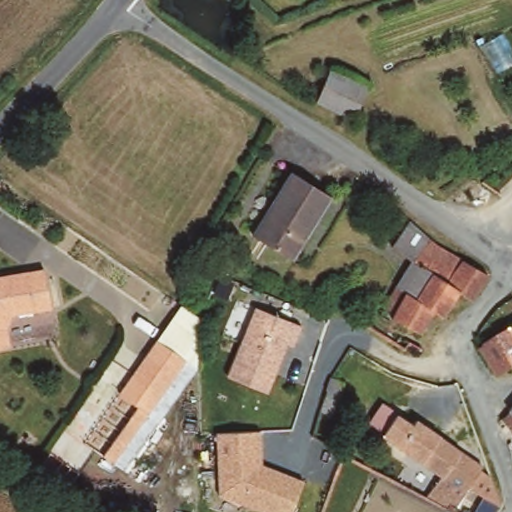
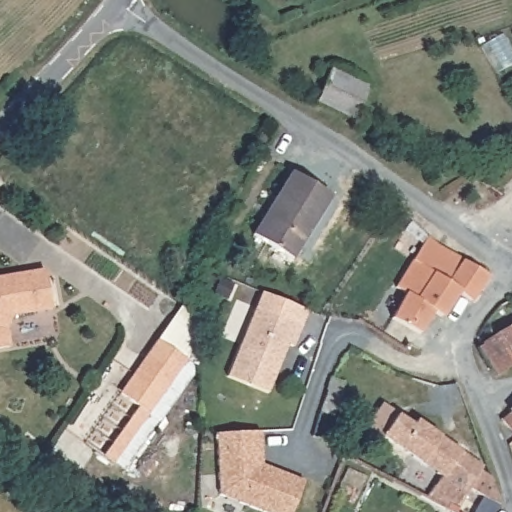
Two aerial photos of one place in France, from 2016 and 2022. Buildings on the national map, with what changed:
unchanged [(316,102),(331,70),(353,80),(367,86),(353,118),(316,102)]
unchanged [(291,172),(330,196),(292,259),(252,236),(291,172)]
unchanged [(471,301),(459,293),(442,317),(433,312),(420,333),(392,319),(394,314),(383,309),(412,262),(392,247),(410,222),(437,245),(489,276),(471,301)]
unchanged [(14,314),(6,331),(9,347),(0,348),(0,277),(42,270),(49,309),(14,314)]
unchanged [(162,351),(182,308),(198,317),(201,365),(192,373),(162,351)]
unchanged [(268,393),(227,378),(254,310),(299,328),(291,349),(288,347),(268,393)]
unchanged [(483,349),(488,346),(487,344),(510,330),(512,329),(512,370),(500,377),(483,349)]
unchanged [(192,373),(118,478),(104,469),(140,419),(123,408),(162,351),(192,373)]
unchanged [(332,377),(345,382),(339,401),(325,397),(332,377)]
unchanged [(512,436),(497,423),(512,409),(512,436)]
unchanged [(460,507),(433,488),(441,477),(382,436),(396,415),(413,426),(416,421),(483,467),(460,507)]
unchanged [(258,512),(218,497),(214,432),(260,432),(262,464),(305,480),(292,512),(258,512)]
unchanged [(512,442),(512,453),(507,447),(512,442)]
unchanged [(453,512),(447,508),(450,504),(459,509),(457,512),(453,512)]

